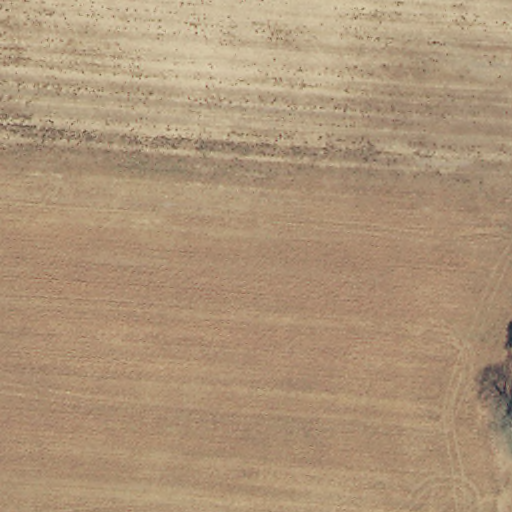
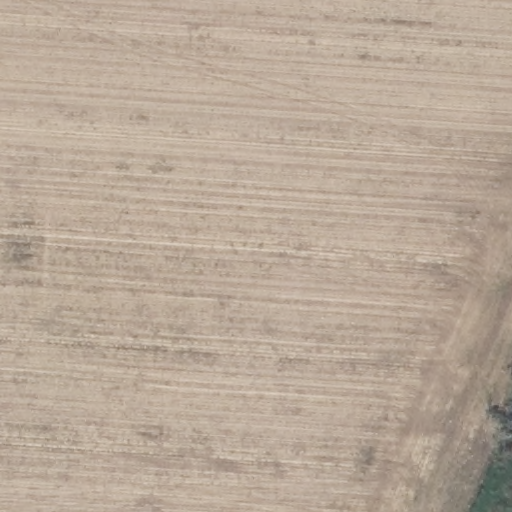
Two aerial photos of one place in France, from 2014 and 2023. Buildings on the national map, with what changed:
[]

